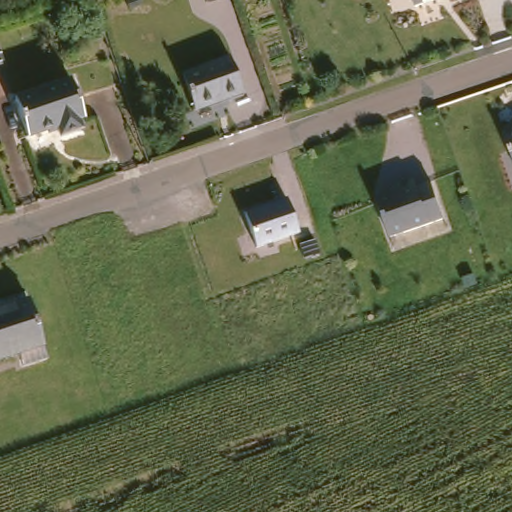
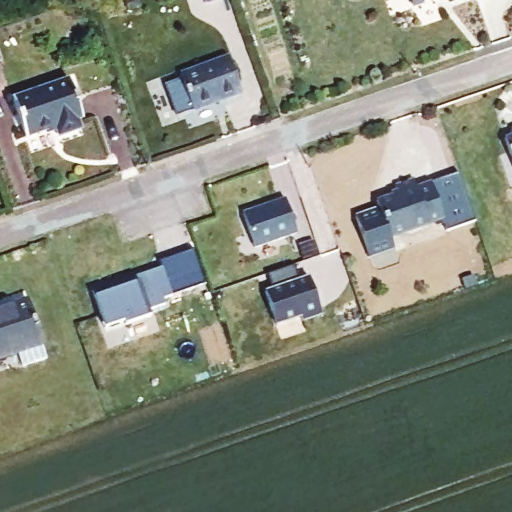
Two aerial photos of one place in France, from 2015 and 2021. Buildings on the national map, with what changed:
unchanged [(206,5),(205,0),(223,0),(206,5)]
unchanged [(412,8),(409,0),(437,0),(412,8)]
unchanged [(2,64),(0,65),(0,58),(2,64)]
unchanged [(230,62),(243,96),(198,113),(185,79),(230,62)]
unchanged [(85,121),(79,123),(82,131),(62,139),(58,131),(28,141),(15,103),(72,84),(85,121)]
unchanged [(511,141),(510,135),(512,134),(512,165),(504,144),(511,141)]
unchanged [(421,180),(430,177),(442,211),(394,228),(381,193),(396,186),(394,180),(415,171),(421,180)]
unchanged [(243,214),(286,200),(297,235),(255,249),(243,214)]
new [(100,319),(92,296),(113,289),(114,295),(130,290),(128,284),(161,273),(159,266),(194,255),(205,289),(162,304),(164,309),(148,315),(150,321),(124,329),(123,327),(104,333),(100,319)]
new [(273,294),(268,279),(296,270),(301,285),(310,281),(323,319),(304,325),(302,321),(278,329),(266,296),(273,294)]
unchanged [(38,352),(16,360),(11,348),(0,352),(0,300),(18,294),(38,352)]

